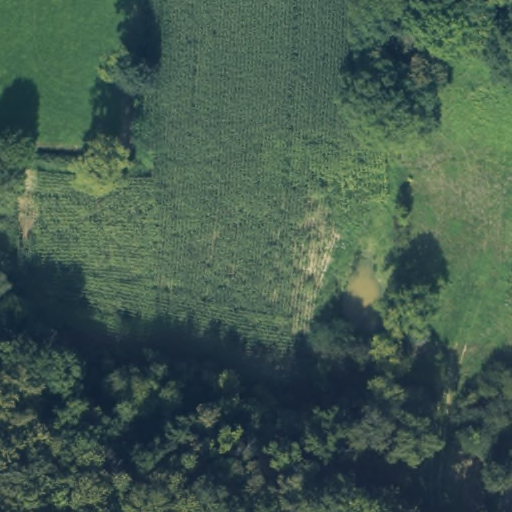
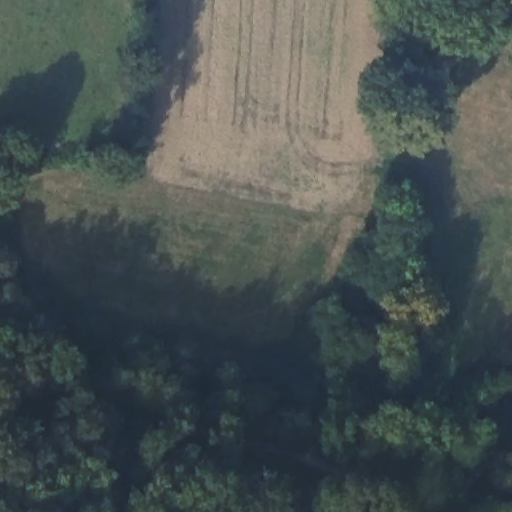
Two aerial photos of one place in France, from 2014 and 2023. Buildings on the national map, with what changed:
[]

